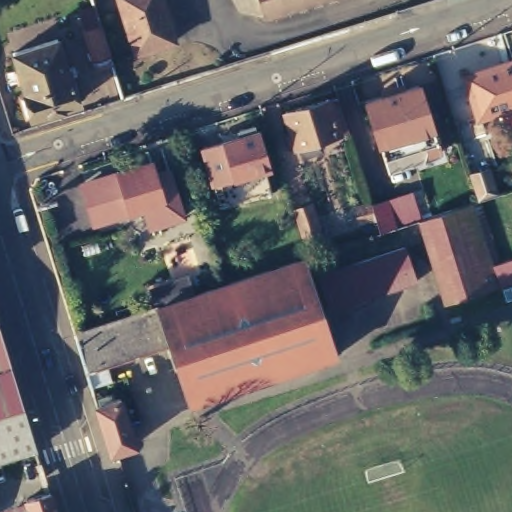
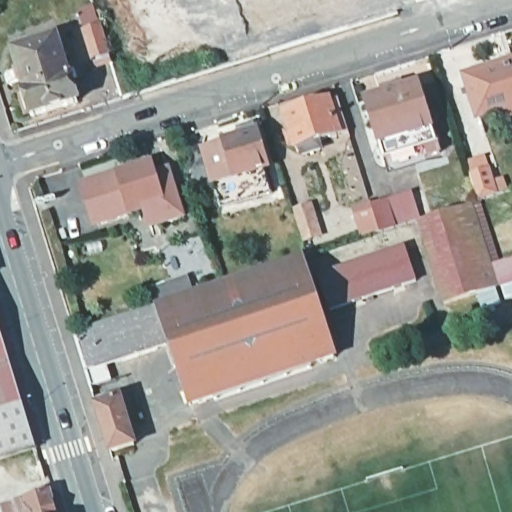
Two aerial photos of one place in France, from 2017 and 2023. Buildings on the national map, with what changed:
unchanged [(136,50),(119,0),(165,0),(176,36),(136,50)]
unchanged [(264,12),(260,0),(303,0),(264,12)]
unchanged [(110,61),(97,65),(77,7),(91,2),(110,61)]
unchanged [(83,92),(37,107),(36,104),(33,105),(27,88),(30,87),(19,43),(62,30),(83,92)]
unchanged [(466,77),(512,62),(512,107),(479,117),(466,77)]
unchanged [(436,139),(382,155),(379,145),(375,130),(361,87),(380,82),(378,76),(389,72),(391,78),(413,72),(427,114),(436,139)]
unchanged [(280,107),(323,95),(324,97),(333,94),(343,127),(333,130),(290,144),(280,107)]
unchanged [(213,145),(228,141),(228,138),(247,133),(244,126),(259,121),(262,128),(264,127),(274,163),(239,174),(224,178),(213,145)]
unchanged [(110,177),(118,175),(152,165),(155,174),(169,170),(184,217),(151,229),(145,209),(130,213),(124,215),(110,177)]
unchanged [(361,203),(376,199),(455,176),(463,202),(423,216),(401,223),(386,228),(381,216),(366,220),(361,203)]
unchanged [(96,224),(85,186),(110,177),(124,215),(96,224)]
unchanged [(463,202),(477,199),(498,263),(505,282),(496,285),(450,300),(423,216),(463,202)]
unchanged [(295,211),(311,207),(317,234),(303,239),(295,211)]
unchanged [(419,276),(334,306),(321,270),(407,240),(419,276)]
unchanged [(150,305),(158,302),(222,282),(303,255),(336,352),(191,401),(170,341),(107,362),(112,377),(91,382),(74,330),(150,305)]
unchanged [(498,263),(512,258),(512,279),(505,282),(498,263)]
unchanged [(28,421),(0,438),(0,325),(28,421)]
unchanged [(121,395),(135,441),(111,448),(97,402),(121,395)]
unchanged [(25,496),(50,488),(57,512),(5,512),(28,505),(25,496)]

